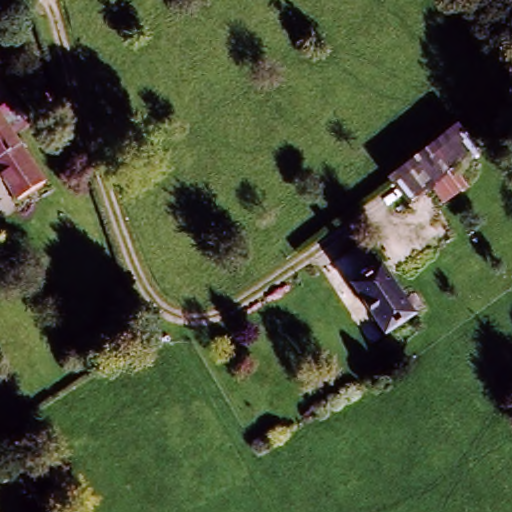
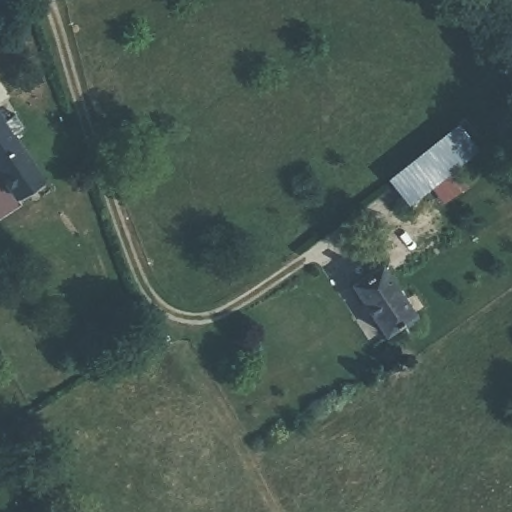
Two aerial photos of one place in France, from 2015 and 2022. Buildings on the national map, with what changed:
unchanged [(7,105),(17,124),(3,135),(13,149),(0,158),(0,109),(7,105)]
unchanged [(407,199),(389,173),(456,124),(475,149),(407,199)]
unchanged [(12,199),(0,180),(0,158),(13,149),(35,183),(12,199)]
unchanged [(385,334),(354,285),(382,268),(412,316),(385,334)]

